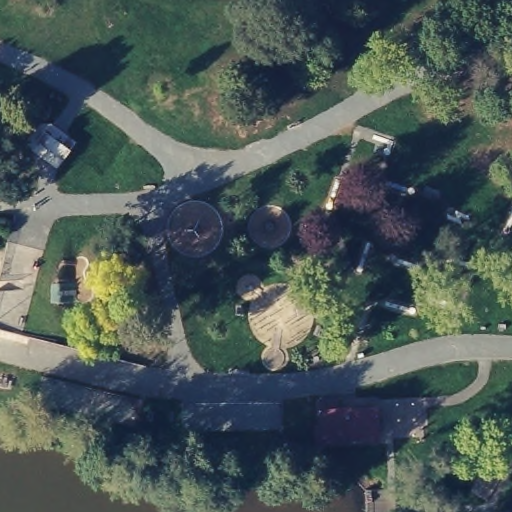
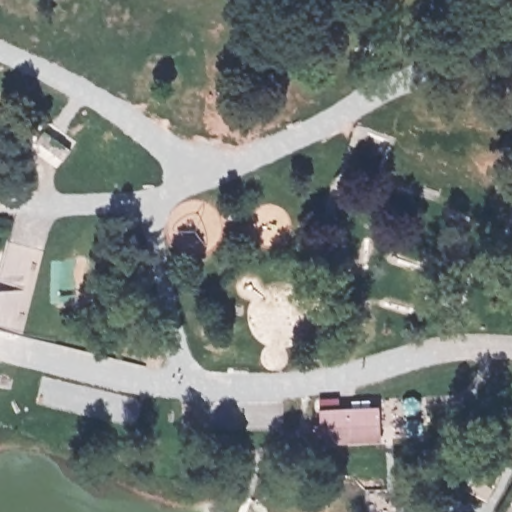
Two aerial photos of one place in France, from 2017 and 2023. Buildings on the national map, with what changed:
unchanged [(33,283),(23,328),(0,322),(0,281),(33,283)]
unchanged [(387,395),(396,428),(343,435),(334,406),(387,395)]

